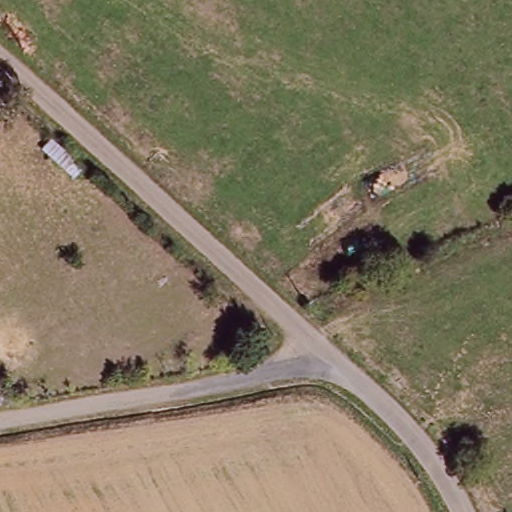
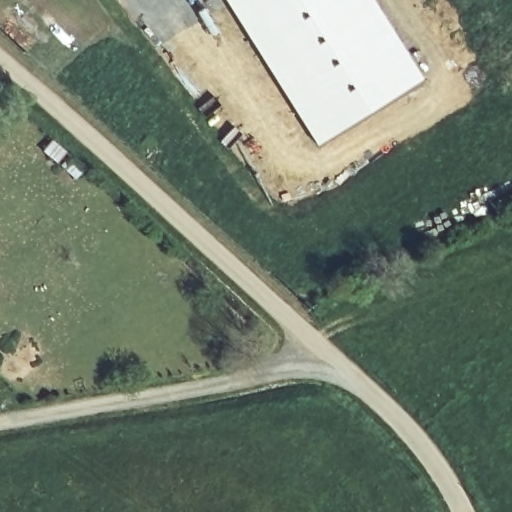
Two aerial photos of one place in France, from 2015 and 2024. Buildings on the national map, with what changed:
new [(424,80),(369,116),(319,147),(225,0),(373,0),(424,80)]

